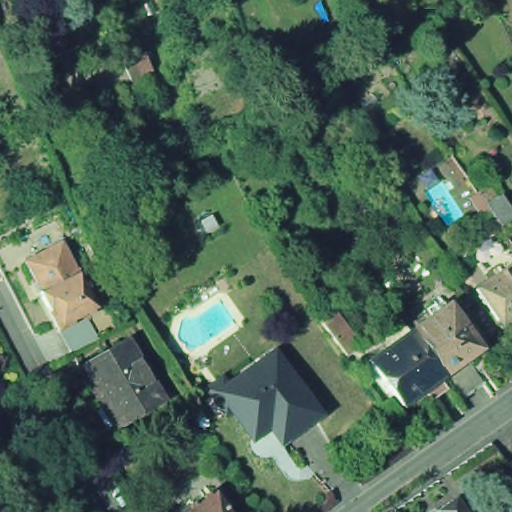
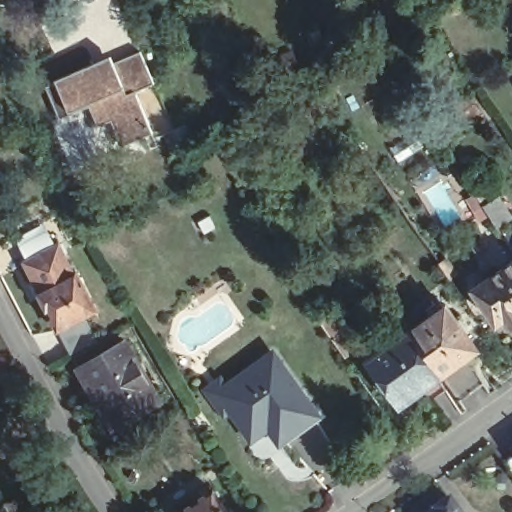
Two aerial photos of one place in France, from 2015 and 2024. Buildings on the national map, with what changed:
demolished [(145,64),(125,74),(114,51),(134,41),(145,64)]
new [(138,48),(154,84),(131,93),(153,132),(108,154),(86,109),(58,121),(42,85),(138,48)]
unchanged [(216,127),(230,119),(235,129),(221,136),(216,127)]
unchanged [(483,206),(483,205),(481,203),(474,193),(475,193),(482,189),(489,201),(496,196),(510,218),(497,227),(483,206)]
unchanged [(209,215),(214,226),(203,232),(196,222),(209,215)]
unchanged [(27,263),(25,261),(23,257),(58,239),(60,243),(61,244),(73,267),(38,286),(27,263)]
unchanged [(439,263),(445,259),(456,274),(449,278),(439,263)]
unchanged [(510,325),(504,317),(497,323),(474,289),(512,263),(512,324),(510,325)]
unchanged [(95,335),(69,349),(68,348),(56,325),(36,287),(38,286),(73,267),(75,266),(95,304),(83,311),(95,334),(95,335)]
unchanged [(423,389),(399,406),(367,361),(409,331),(446,305),(478,349),(466,358),(484,383),(459,401),(444,380),(441,376),(438,378),(446,389),(431,400),(423,389)]
unchanged [(344,355),(337,346),(328,334),(322,325),(319,321),(319,320),(331,312),(341,325),(356,347),(344,355)]
unchanged [(124,342),(158,400),(116,425),(94,386),(89,389),(78,369),(124,342)]
unchanged [(224,387),(273,352),(318,414),(279,442),(268,426),(251,438),(229,407),(218,392),(224,387)]
unchanged [(511,459),(512,458),(512,461),(511,459)]
unchanged [(228,512),(181,512),(213,490),(228,512)]
unchanged [(436,506),(452,495),(464,512),(432,512),(437,508),(436,506)]

